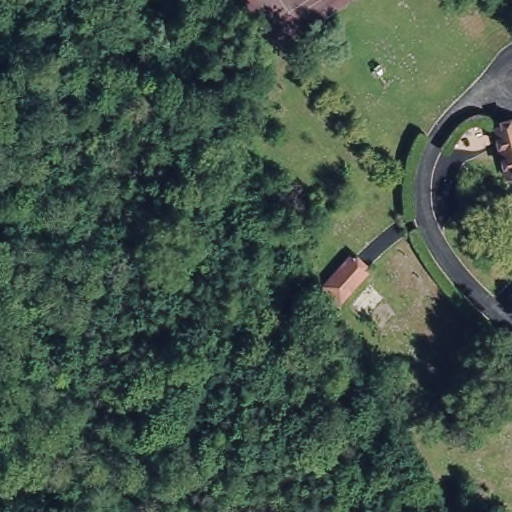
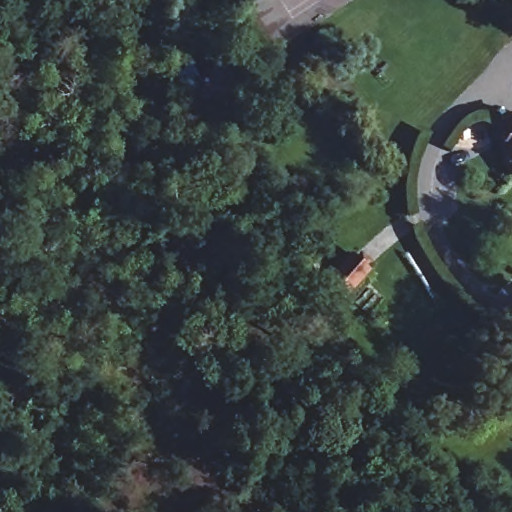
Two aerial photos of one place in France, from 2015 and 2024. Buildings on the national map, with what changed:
unchanged [(502,168),(492,123),(512,119),(512,165),(502,168)]
unchanged [(311,240),(330,254),(306,284),(288,271),(311,240)]
unchanged [(318,285),(346,250),(372,267),(346,304),(318,285)]

